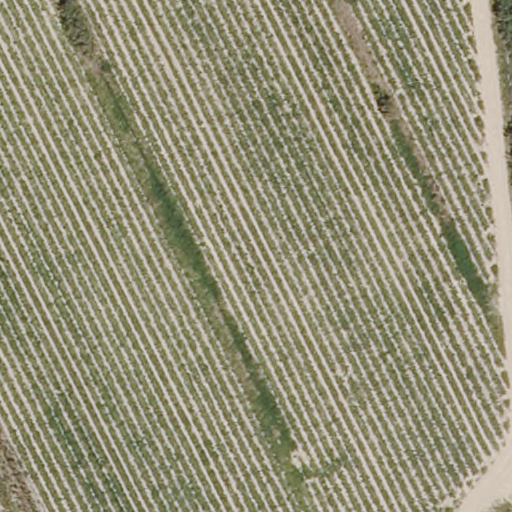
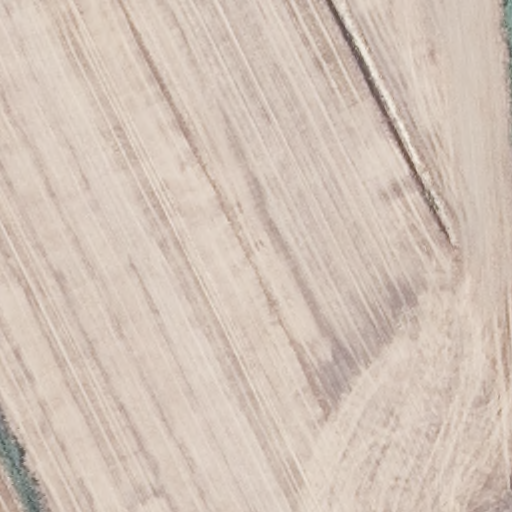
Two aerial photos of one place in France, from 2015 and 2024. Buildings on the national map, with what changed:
[]

